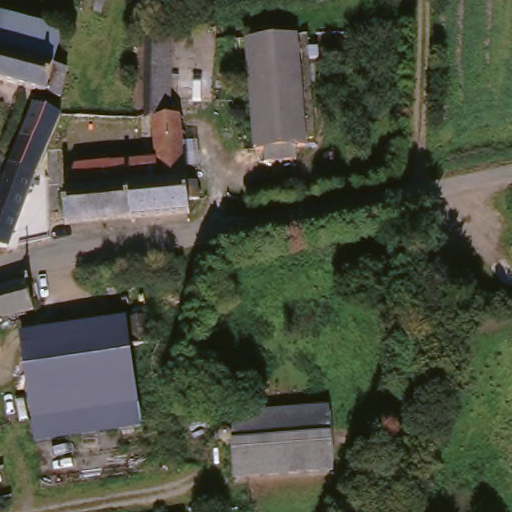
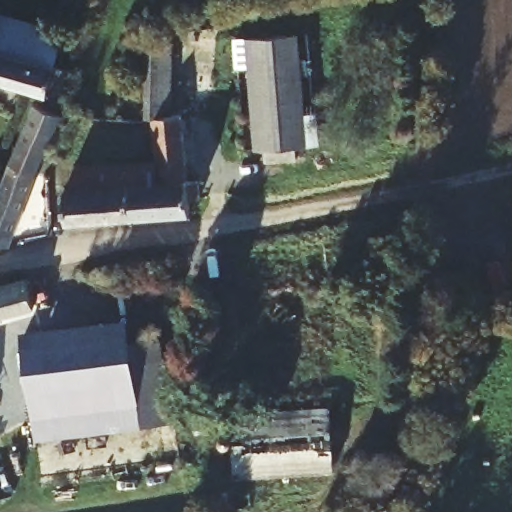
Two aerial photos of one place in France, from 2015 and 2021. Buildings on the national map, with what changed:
unchanged [(62,24),(54,59),(0,44),(0,8),(62,24)]
unchanged [(313,161),(292,163),(292,157),(260,159),(259,145),(249,146),(241,37),(297,34),(302,142),(312,141),(313,161)]
unchanged [(140,39),(157,38),(168,37),(167,114),(146,115),(139,115),(140,39)]
unchanged [(54,59),(67,62),(60,92),(0,76),(0,44),(54,59)]
unchanged [(33,101),(61,110),(37,170),(7,161),(33,101)]
unchanged [(177,114),(185,210),(62,221),(61,188),(154,177),(151,155),(146,115),(167,114),(177,114)]
unchanged [(61,188),(72,163),(151,155),(154,177),(61,188)]
unchanged [(37,170),(11,241),(0,240),(0,182),(7,161),(37,170)]
unchanged [(21,279),(31,308),(0,317),(0,285),(21,279)]
unchanged [(20,332),(123,316),(127,343),(140,425),(34,440),(20,332)]
unchanged [(330,467),(231,477),(225,417),(323,406),(330,467)]

